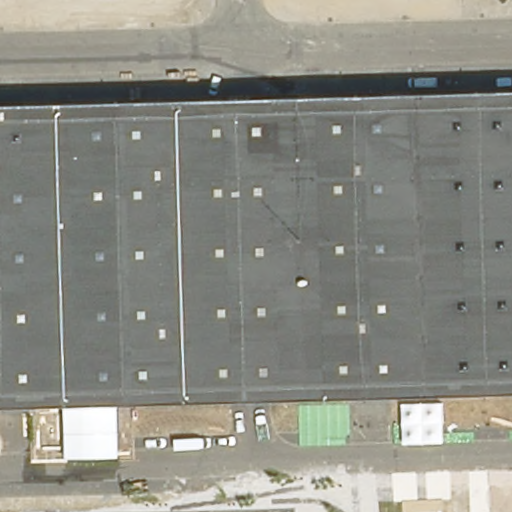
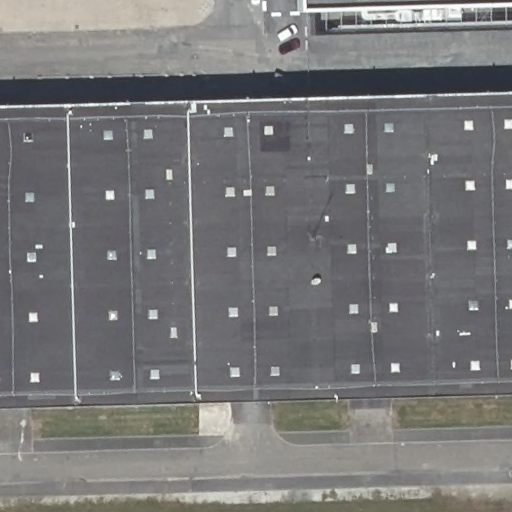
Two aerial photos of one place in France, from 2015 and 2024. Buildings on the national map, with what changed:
new [(312,34),(311,12),(297,12),(296,0),(512,0),(512,28),(312,34)]
unchanged [(248,99),(512,93),(512,396),(390,400),(349,400),(269,403),(229,403),(33,408),(0,410),(0,106),(215,100),(248,99)]

